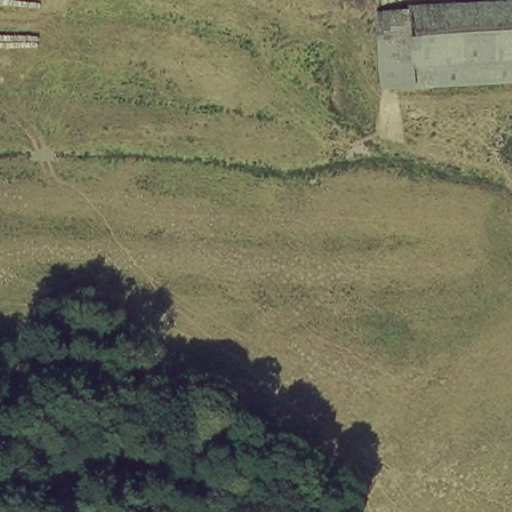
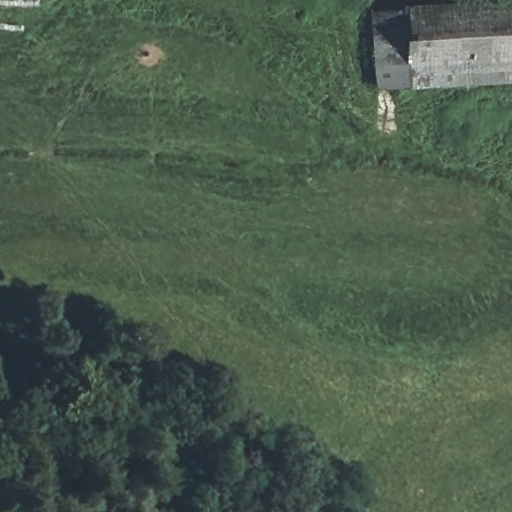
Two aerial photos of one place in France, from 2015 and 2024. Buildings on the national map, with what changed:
unchanged [(512,5),(512,80),(382,89),(377,11),(512,5)]

